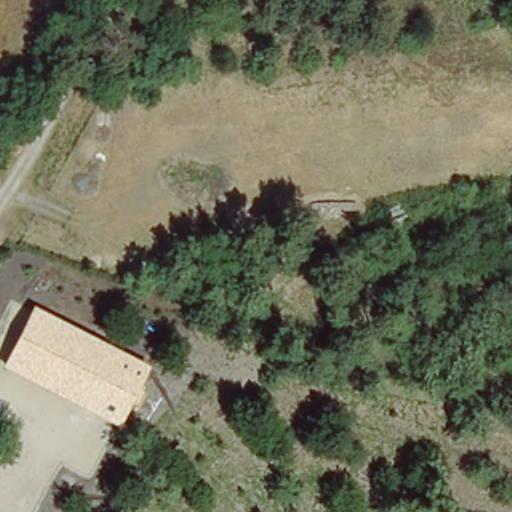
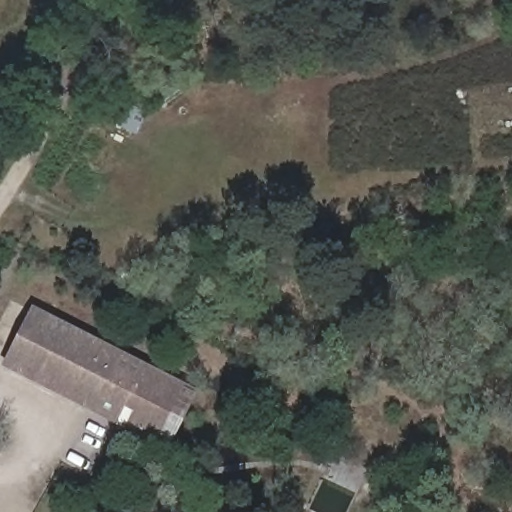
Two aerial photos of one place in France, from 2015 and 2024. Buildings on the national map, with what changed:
unchanged [(117,427),(1,367),(34,306),(149,366),(117,427)]
new [(149,366),(199,392),(169,450),(117,427),(149,366)]

